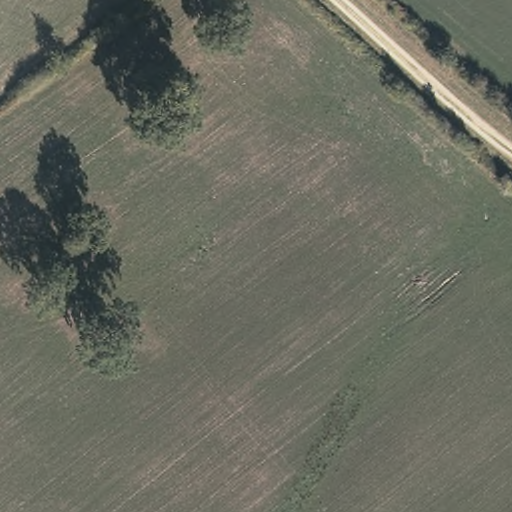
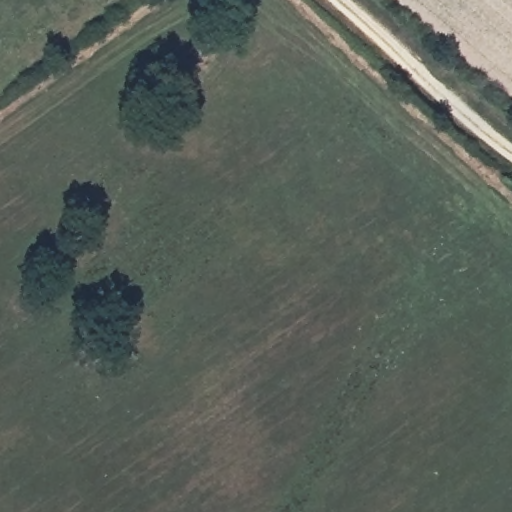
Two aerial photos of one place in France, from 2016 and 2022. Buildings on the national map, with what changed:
[]

